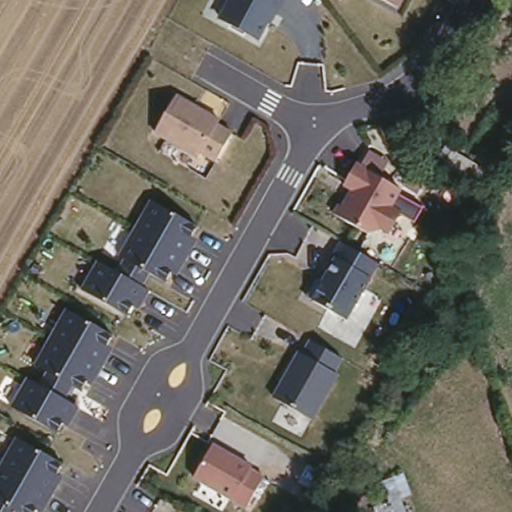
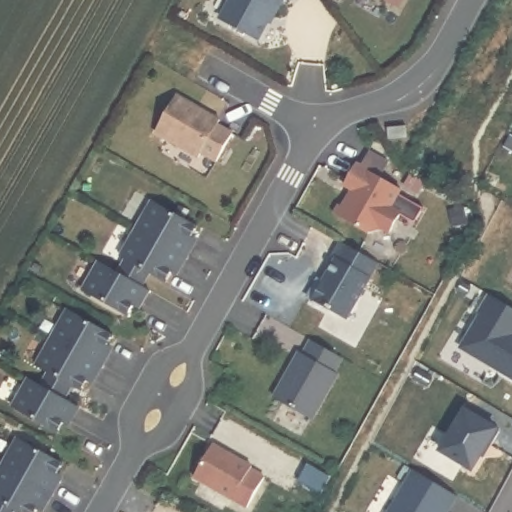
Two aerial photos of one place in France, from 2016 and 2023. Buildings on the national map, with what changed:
unchanged [(267,38),(221,15),(228,0),(284,0),(267,38)]
unchanged [(403,7),(387,0),(407,0),(403,7)]
unchanged [(234,129),(214,166),(154,130),(175,92),(234,129)]
unchanged [(403,187),(393,205),(402,210),(393,230),(380,225),(376,234),(340,213),(351,190),(345,185),(359,163),(403,187)]
unchanged [(201,226),(169,283),(153,275),(147,287),(150,289),(142,306),(134,304),(129,315),(82,287),(96,258),(111,265),(148,199),(201,226)]
unchanged [(375,260),(347,316),(308,297),(336,242),(375,260)]
new [(512,378),(459,347),(487,296),(512,309),(512,378)]
unchanged [(108,333),(104,345),(109,350),(92,380),(87,378),(81,387),(74,385),(66,399),(77,406),(65,430),(13,405),(27,378),(35,381),(44,366),(36,361),(61,313),(108,333)]
unchanged [(341,359),(312,417),(274,396),(304,339),(341,359)]
new [(439,452),(464,406),(499,427),(476,472),(439,452)]
unchanged [(52,472),(59,476),(40,512),(38,512),(34,510),(33,512),(0,512),(0,465),(14,440),(57,460),(52,472)]
unchanged [(267,471),(247,505),(198,477),(216,445),(267,471)]
new [(306,465),(328,477),(318,495),(296,483),(306,465)]
new [(448,512),(389,512),(412,470),(456,496),(448,512)]

